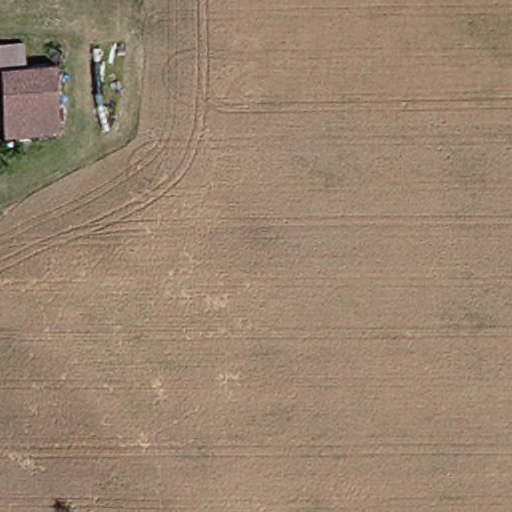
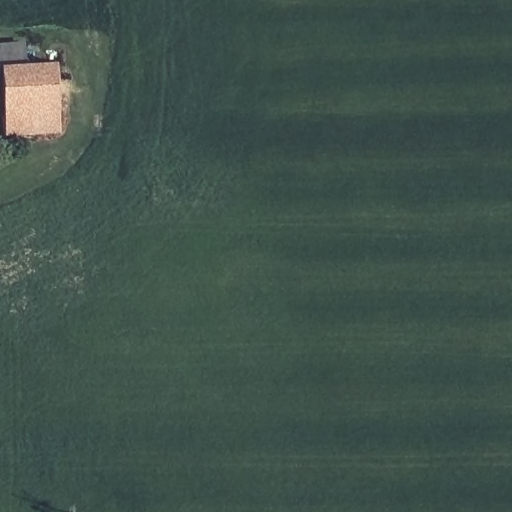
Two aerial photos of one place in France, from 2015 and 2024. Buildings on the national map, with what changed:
unchanged [(0,131),(0,45),(18,43),(21,62),(53,58),(52,75),(59,75),(64,143),(34,145),(2,150),(0,131)]

